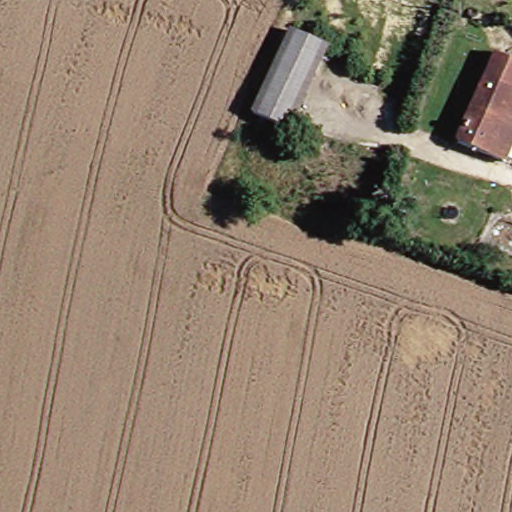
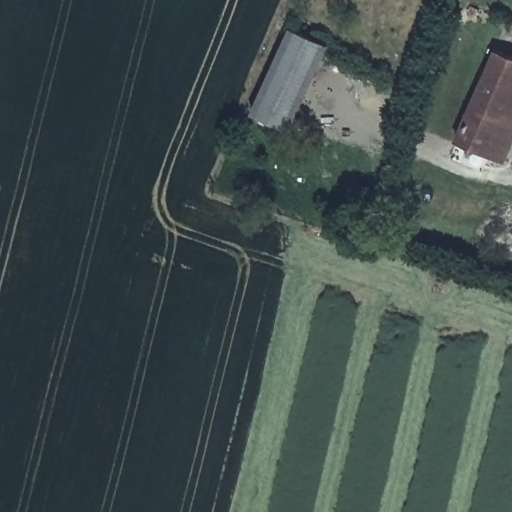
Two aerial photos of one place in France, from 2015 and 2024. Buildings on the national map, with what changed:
unchanged [(342,47),(316,101),(298,136),(269,122),(250,113),(269,77),(295,22),(309,30),(342,47)]
unchanged [(500,52),(512,56),(512,156),(465,142),(500,52)]

